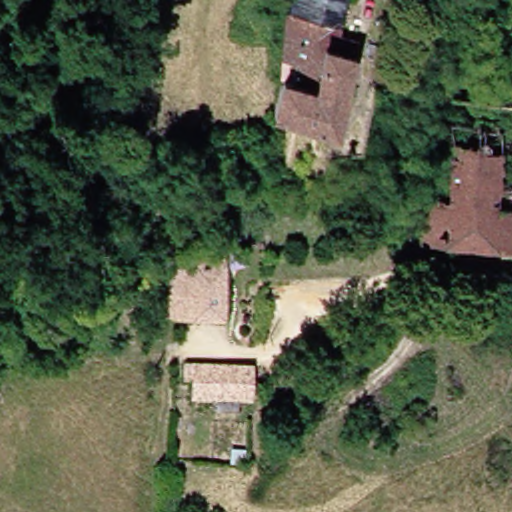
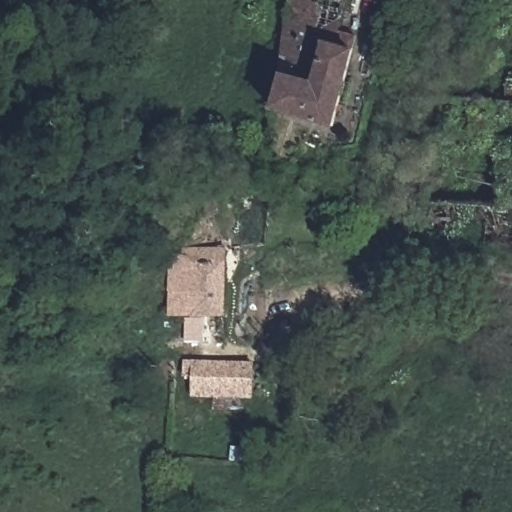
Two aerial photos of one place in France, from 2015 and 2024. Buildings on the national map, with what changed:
unchanged [(345,30),(362,35),(339,128),(278,111),(286,67),(291,24),(297,0),(353,0),(345,30)]
unchanged [(512,83),(512,105),(436,101),(437,86),(437,80),(453,81),(512,83)]
unchanged [(512,105),(512,193),(422,189),(425,101),(436,101),(512,105)]
unchanged [(422,189),(512,193),(512,245),(421,239),(422,189)]
unchanged [(166,271),(167,251),(188,252),(188,242),(231,242),(231,317),(174,317),(175,271),(166,271)]
unchanged [(187,375),(187,362),(256,364),(258,400),(198,401),(198,375),(187,375)]

